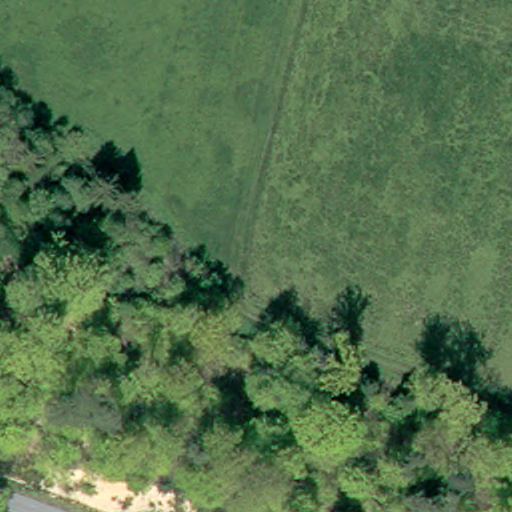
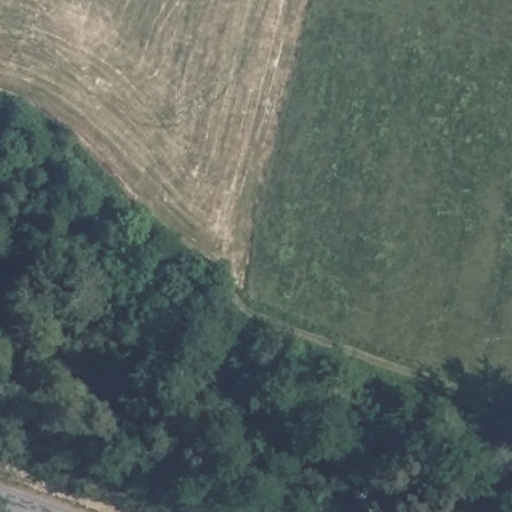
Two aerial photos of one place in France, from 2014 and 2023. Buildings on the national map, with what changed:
[]

